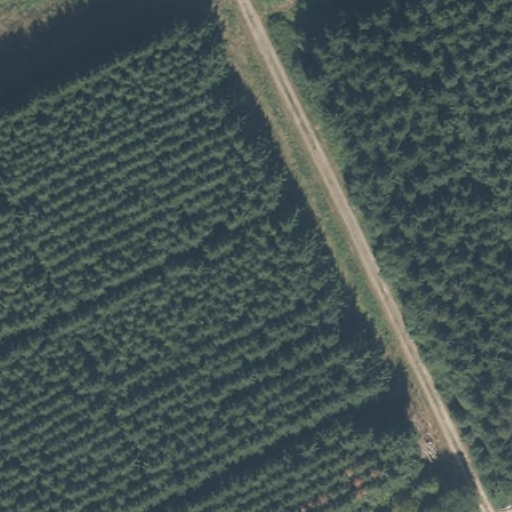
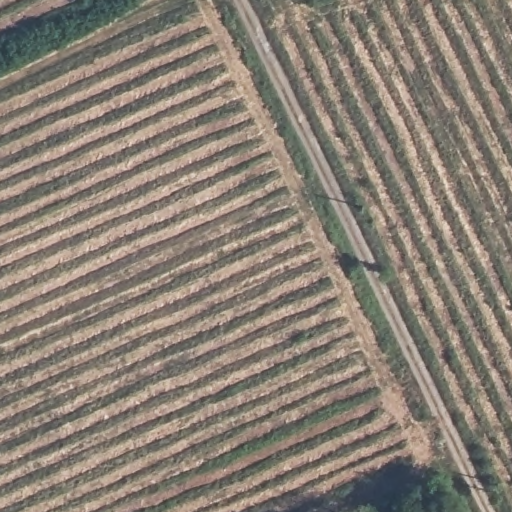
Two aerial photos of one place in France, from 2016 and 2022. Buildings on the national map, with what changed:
[]

